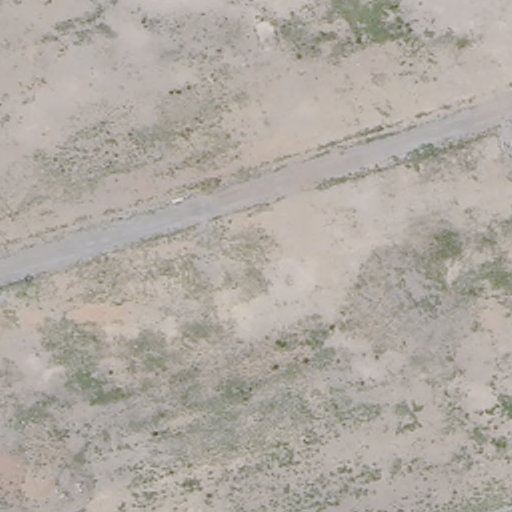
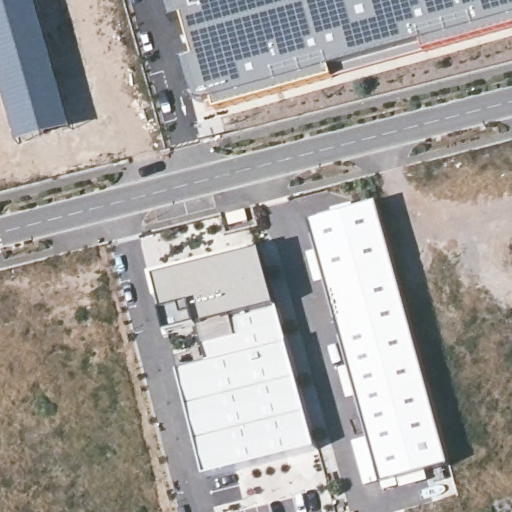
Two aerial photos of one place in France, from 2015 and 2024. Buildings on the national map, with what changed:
new [(19,142),(0,76),(0,0),(37,0),(73,128),(19,142)]
new [(461,42),(423,51),(422,45),(332,67),(334,76),(200,117),(184,60),(196,56),(183,14),(172,17),(167,0),(512,0),(512,28),(461,42)]
new [(375,204),(449,466),(382,485),(307,223),(375,204)]
new [(202,264),(261,251),(278,308),(200,330),(169,337),(155,276),(202,264)]
new [(210,363),(200,330),(278,308),(318,450),(205,478),(178,371),(210,363)]

